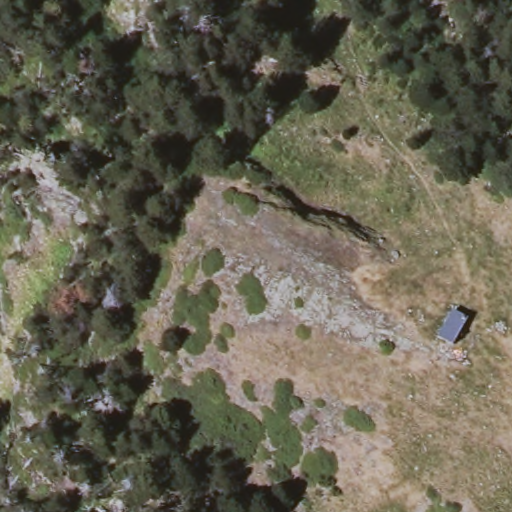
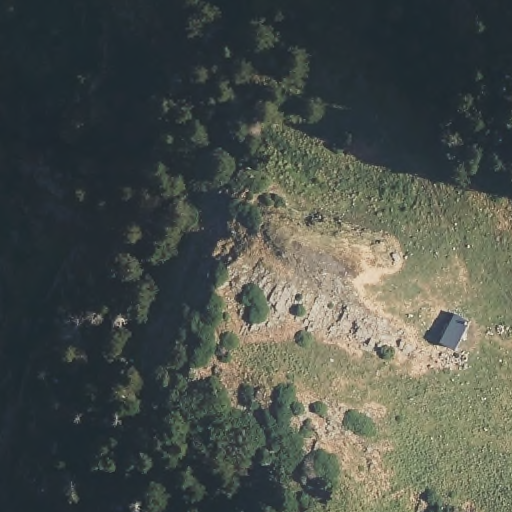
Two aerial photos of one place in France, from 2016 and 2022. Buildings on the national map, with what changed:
unchanged [(438,340),(453,313),(467,321),(453,347),(438,340)]

